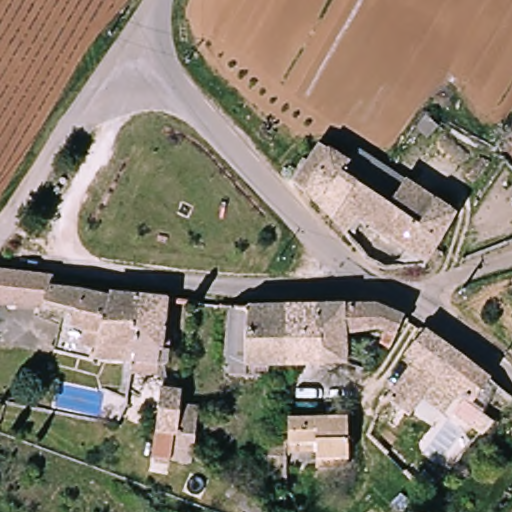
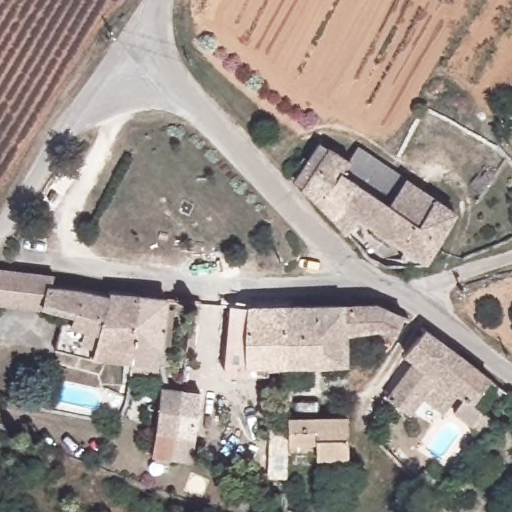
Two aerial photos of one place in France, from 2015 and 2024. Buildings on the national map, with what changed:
unchanged [(353,225),(342,241),(292,184),(316,142),(352,161),(343,179),(394,207),(408,179),(448,208),(460,214),(425,267),(353,225)]
unchanged [(0,306),(0,276),(38,280),(37,310),(0,306)]
unchanged [(47,281),(50,292),(135,302),(127,385),(125,392),(117,392),(118,365),(90,362),(89,365),(56,362),(58,320),(37,317),(37,310),(38,280),(47,281)]
unchanged [(160,327),(164,330),(163,367),(135,365),(133,387),(127,385),(135,302),(161,304),(160,327)]
unchanged [(233,307),(282,307),(282,363),(282,389),(276,388),(275,372),(262,372),(262,375),(237,374),(237,366),(217,366),(222,306),(233,307)]
unchanged [(282,307),(307,307),(307,333),(315,333),(316,362),(282,363),(282,307)]
unchanged [(337,307),(340,362),(316,362),(315,333),(307,333),(307,307),(337,307)]
unchanged [(397,318),(385,342),(380,338),(380,327),(346,330),(347,362),(340,362),(337,307),(375,307),(397,318)]
unchanged [(457,355),(438,377),(410,413),(387,397),(415,360),(405,352),(423,331),(457,355)]
unchanged [(485,411),(438,377),(457,355),(501,387),(485,411)]
unchanged [(158,387),(184,387),(183,417),(193,418),(190,468),(147,466),(158,387)]
unchanged [(314,456),(314,445),(286,444),(286,436),(287,421),(347,422),(347,461),(314,461),(314,456)]

